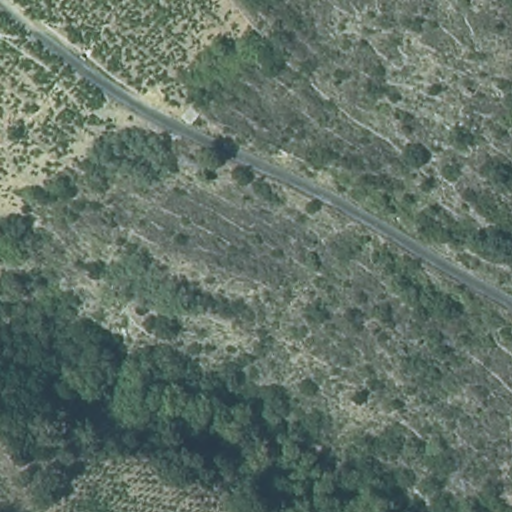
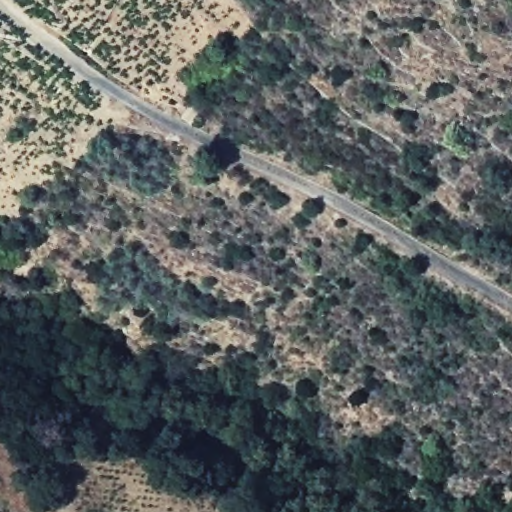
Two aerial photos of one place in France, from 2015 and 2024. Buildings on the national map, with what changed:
unchanged [(206,111),(196,126),(181,121),(191,101),(206,111)]

